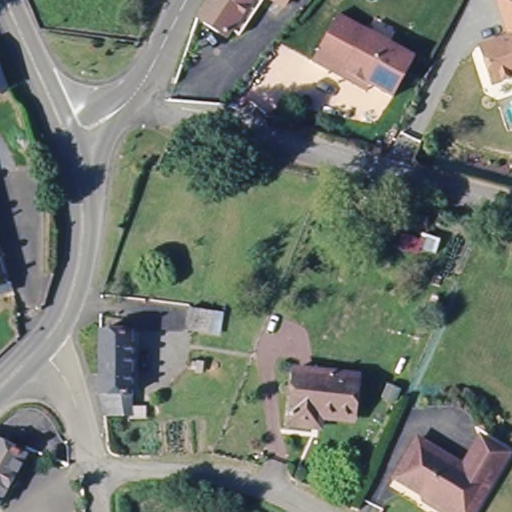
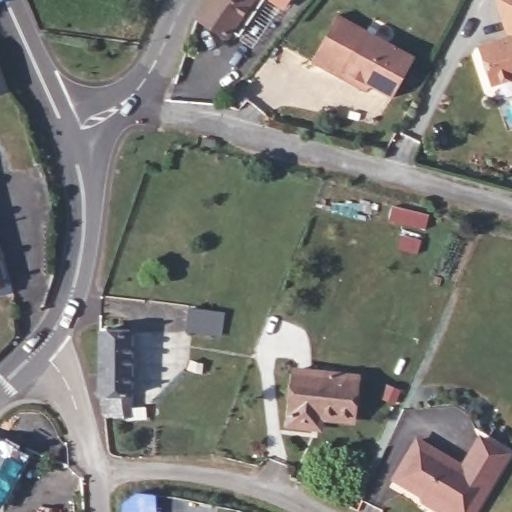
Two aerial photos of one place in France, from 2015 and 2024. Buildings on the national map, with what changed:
unchanged [(227,31),(198,12),(207,0),(264,0),(239,32),(230,27),(227,31)]
unchanged [(276,0),(286,0),(283,5),(276,0)]
unchanged [(493,0),(512,0),(512,82),(510,76),(484,82),(475,46),(503,39),(493,0)]
unchanged [(343,84),(313,66),(339,22),(412,66),(389,104),(371,92),(367,100),(343,84)]
unchanged [(9,95),(0,99),(0,70),(9,95)]
unchanged [(4,278),(10,277),(13,290),(0,293),(0,263),(4,278)]
unchanged [(189,327),(191,308),(220,312),(217,331),(189,327)]
unchanged [(145,417),(128,417),(128,411),(99,410),(99,390),(96,390),(98,328),(130,330),(128,403),(136,403),(146,403),(145,417)]
unchanged [(324,421),(323,431),(315,430),(292,427),(299,372),(360,379),(357,416),(356,423),(324,421)]
unchanged [(422,501),(419,493),(398,481),(422,444),(461,468),(480,441),(506,457),(472,512),(440,512),(422,501)]
unchanged [(26,459),(0,502),(0,446),(26,459)]

